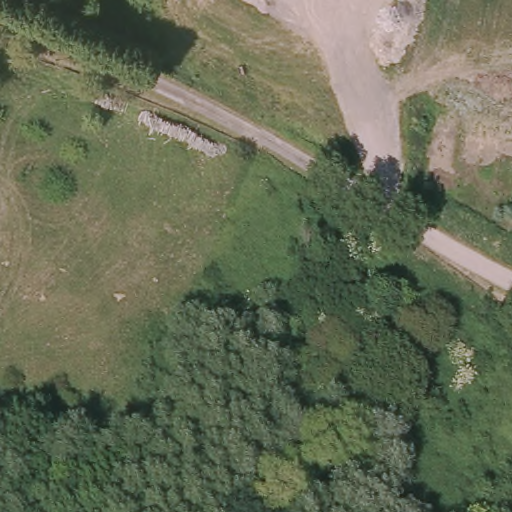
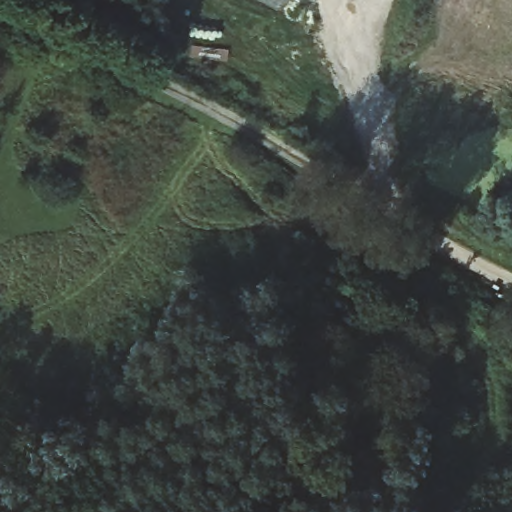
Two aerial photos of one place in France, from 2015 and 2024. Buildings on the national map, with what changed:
[]

